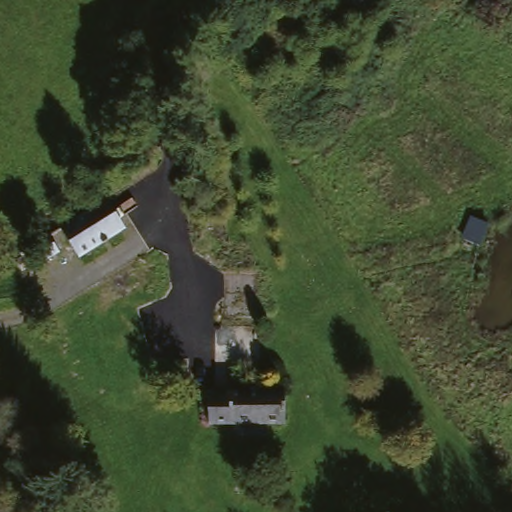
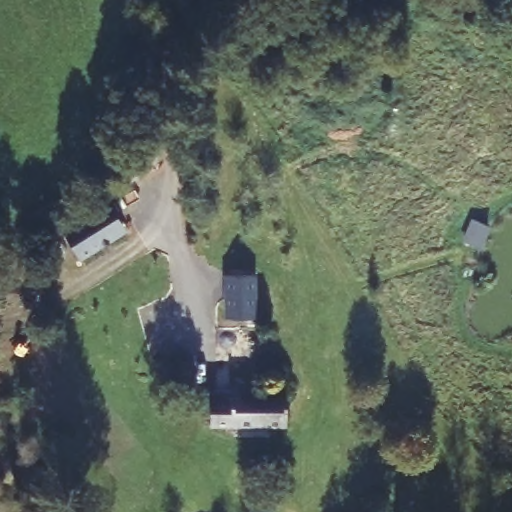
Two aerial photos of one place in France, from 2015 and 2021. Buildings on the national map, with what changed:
unchanged [(61,229),(106,201),(126,231),(79,260),(61,229)]
new [(225,275),(256,276),(256,317),(226,317),(225,275)]
unchanged [(288,428),(212,425),(210,388),(213,388),(285,393),(288,428)]

